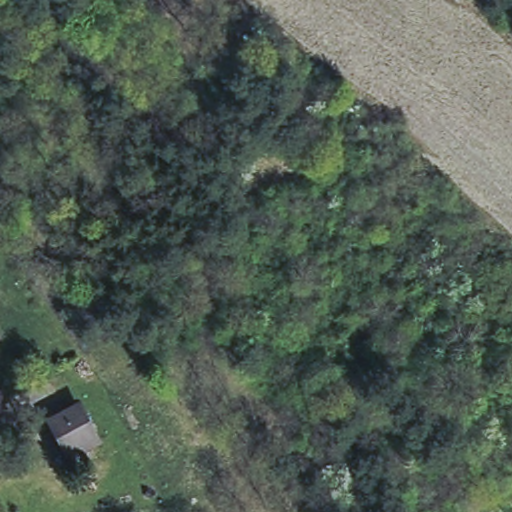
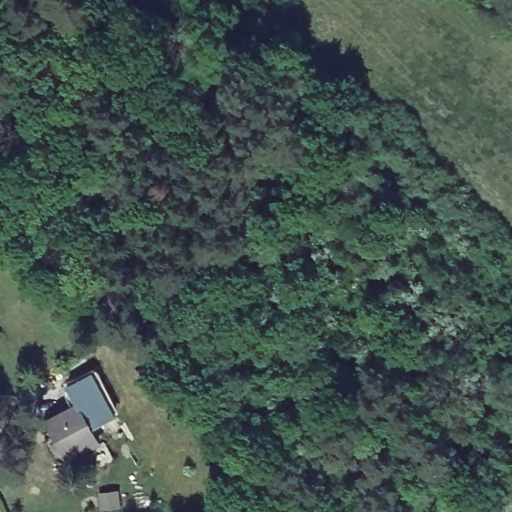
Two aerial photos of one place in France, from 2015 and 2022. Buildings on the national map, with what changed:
new [(93,374),(117,417),(92,433),(76,406),(73,407),(65,390),(93,374)]
unchanged [(77,406),(96,441),(67,457),(47,421),(77,406)]

